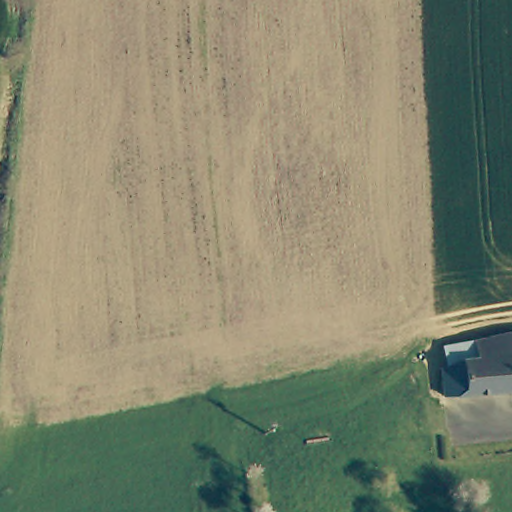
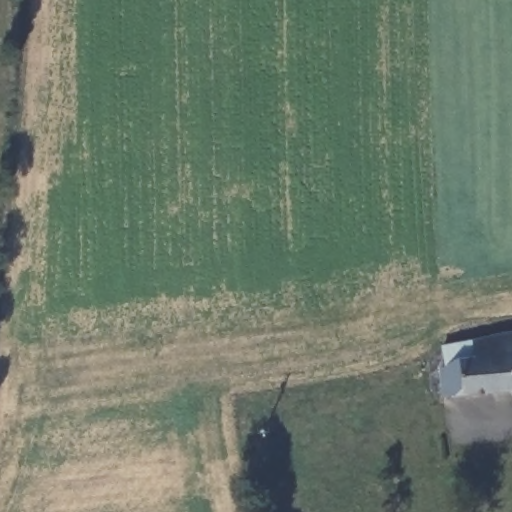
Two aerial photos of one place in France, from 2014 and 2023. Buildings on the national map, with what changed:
unchanged [(512,334),(512,361),(509,335),(512,334)]
unchanged [(477,360),(474,343),(509,335),(512,361),(512,392),(464,397),(446,398),(444,371),(462,361),(477,360)]

